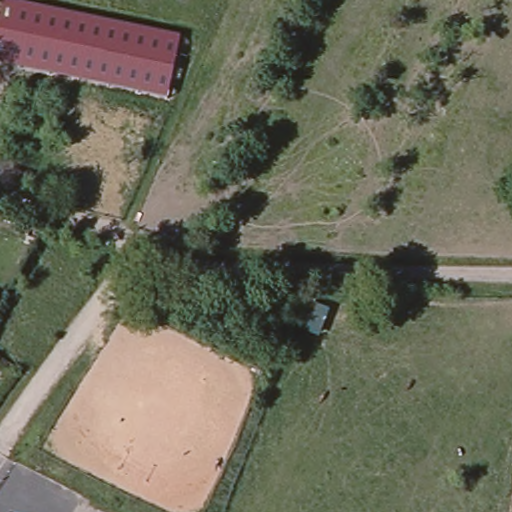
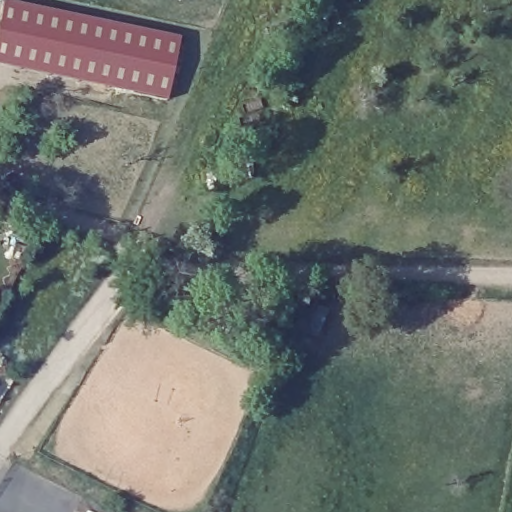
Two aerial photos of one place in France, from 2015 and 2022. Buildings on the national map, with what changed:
unchanged [(181,35),(169,99),(0,62),(0,21),(5,0),(17,0),(181,35)]

